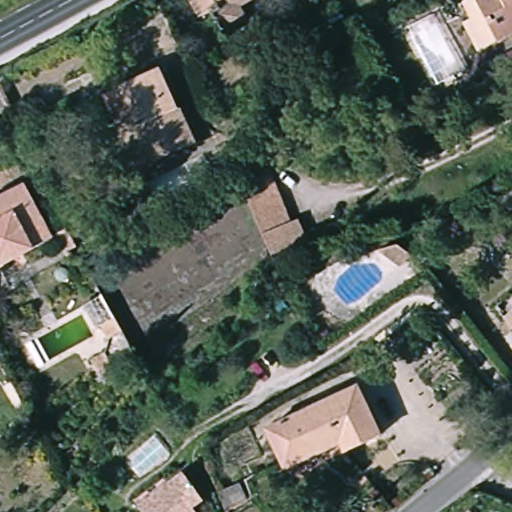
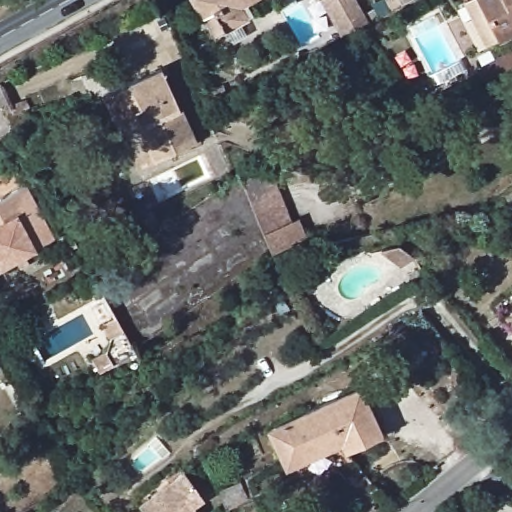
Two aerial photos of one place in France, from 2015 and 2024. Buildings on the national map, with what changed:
unchanged [(249,0),(251,4),(245,8),(251,21),(226,34),(207,0),(249,0)]
new [(356,31),(344,38),(324,0),(354,0),(368,25),(356,31)]
new [(399,0),(414,0),(402,6),(399,0)]
unchanged [(479,14),(471,0),(512,0),(512,35),(494,45),(479,53),(464,21),(479,14)]
unchanged [(138,98),(127,72),(155,60),(193,152),(154,169),(127,101),(138,98)]
unchanged [(304,237),(272,251),(248,192),(281,178),(304,237)]
unchanged [(55,242),(0,271),(0,201),(28,186),(55,242)]
unchanged [(400,264),(381,255),(395,244),(412,254),(400,264)]
unchanged [(106,354),(110,340),(102,326),(116,318),(136,354),(99,376),(91,361),(106,354)]
unchanged [(386,436),(348,455),(344,445),(289,477),(265,431),(364,383),(386,436)]
unchanged [(196,510),(197,512),(143,512),(188,474),(209,499),(196,510)]

